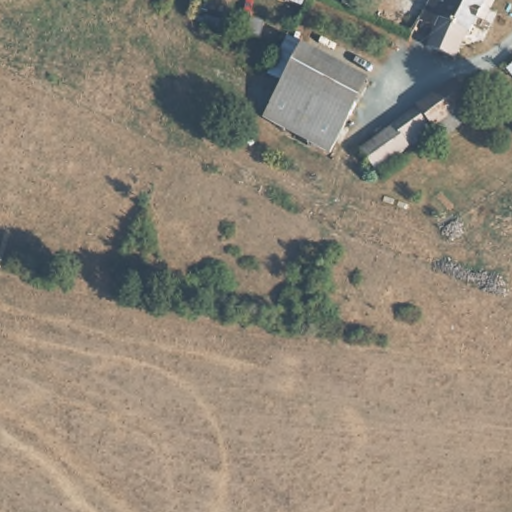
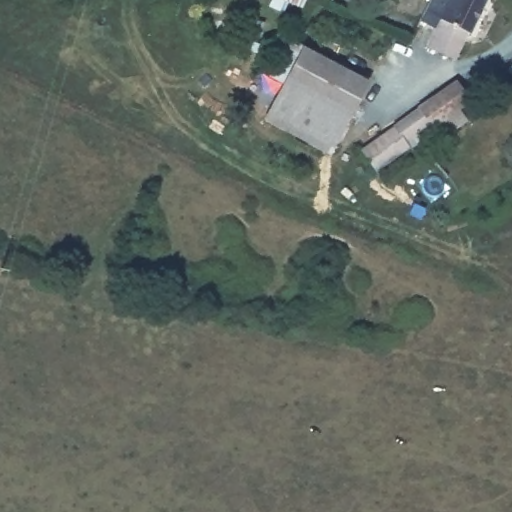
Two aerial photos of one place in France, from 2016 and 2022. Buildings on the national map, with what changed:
unchanged [(290,0),(304,0),(302,5),(290,0)]
unchanged [(424,41),(436,19),(426,14),(430,5),(425,2),(426,0),(481,0),(452,54),(424,41)]
unchanged [(371,75),(332,150),(261,115),(283,77),(266,72),(289,30),(371,75)]
unchanged [(504,70),(512,63),(512,78),(504,70)]
unchanged [(454,81),(472,102),(459,112),(465,119),(437,128),(434,124),(381,162),(368,146),(454,81)]
unchanged [(310,251),(313,252),(316,255),(316,261),(313,263),(310,263),(307,262),(305,259),(306,255),(307,253),(310,251)]

